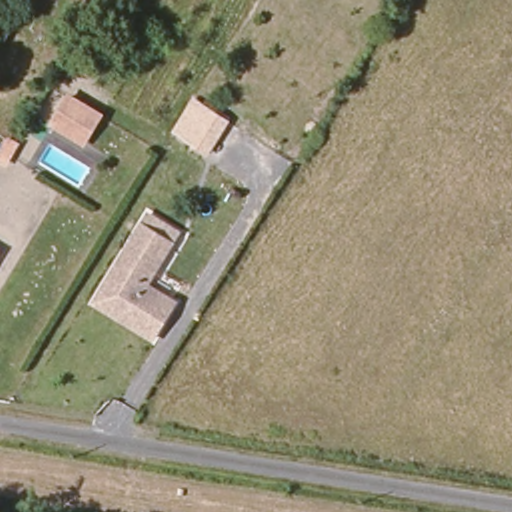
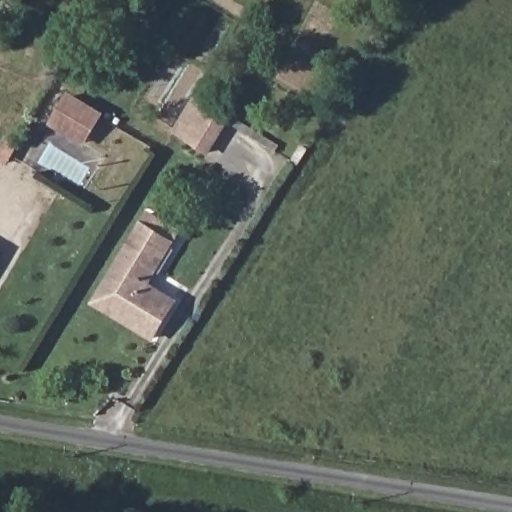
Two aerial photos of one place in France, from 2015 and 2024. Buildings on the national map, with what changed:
unchanged [(86,149),(47,125),(67,92),(105,114),(86,149)]
unchanged [(207,156),(171,131),(195,98),(230,122),(207,156)]
unchanged [(103,297),(149,227),(179,247),(161,274),(152,287),(180,305),(156,340),(120,318),(98,305),(103,297)]

